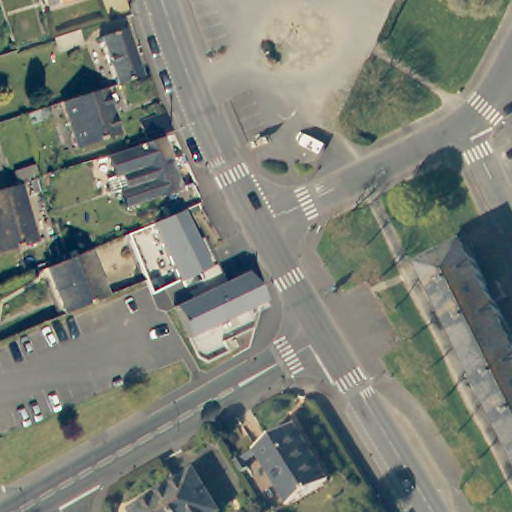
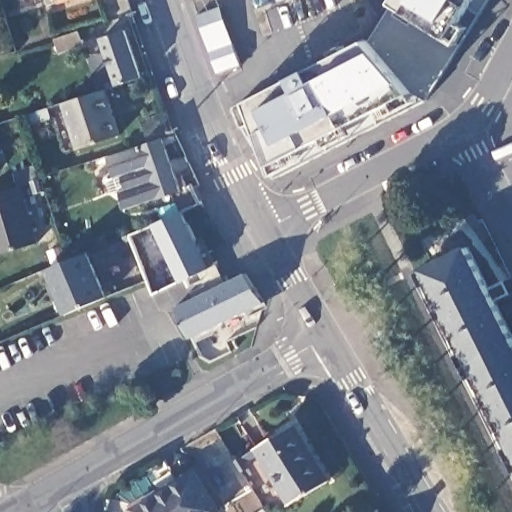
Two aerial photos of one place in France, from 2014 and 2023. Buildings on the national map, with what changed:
unchanged [(49,0),(85,0),(52,11),(49,0)]
new [(292,78),(307,69),(367,40),(392,4),(394,0),(473,0),(449,39),(460,46),(425,103),(412,93),(272,165),(256,123),(247,126),(240,106),(249,102),(292,78)]
new [(279,0),(283,0),(280,1),(279,0)]
unchanged [(101,39),(125,30),(142,76),(118,84),(101,39)]
unchanged [(80,31),(83,44),(66,49),(62,36),(80,31)]
unchanged [(104,94),(120,139),(77,153),(64,107),(104,94)]
unchanged [(174,136),(147,145),(140,127),(167,118),(174,136)]
unchanged [(166,203),(125,215),(119,197),(111,197),(107,184),(113,183),(105,161),(161,144),(180,197),(194,192),(200,208),(172,219),(166,203)]
unchanged [(0,258),(0,195),(20,189),(15,176),(34,169),(39,183),(22,188),(37,246),(0,258)]
unchanged [(265,302),(190,339),(175,307),(205,293),(196,274),(180,282),(155,226),(172,219),(186,214),(197,242),(204,239),(224,284),(245,274),(265,302)]
unchanged [(474,373),(452,328),(430,282),(427,275),(471,254),(490,293),(501,287),(507,300),(497,306),(512,338),(512,450),(497,419),(474,373)]
unchanged [(50,273),(79,260),(91,255),(107,299),(102,300),(67,315),(50,273)]
unchanged [(251,454),(297,427),(330,484),(287,508),(251,454)]
unchanged [(131,512),(192,472),(216,512),(131,512)]

